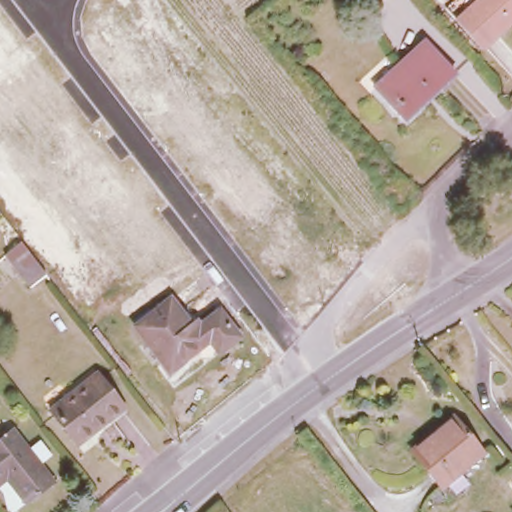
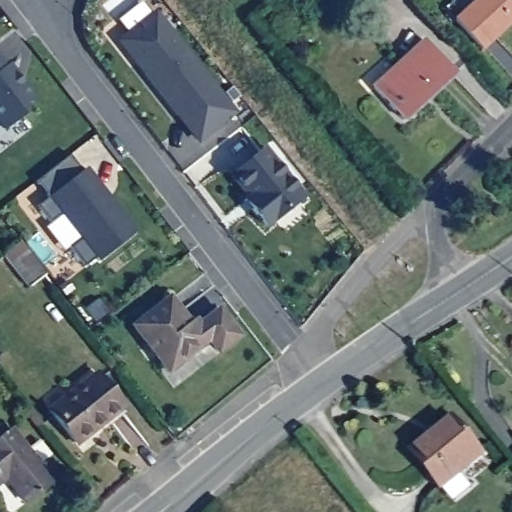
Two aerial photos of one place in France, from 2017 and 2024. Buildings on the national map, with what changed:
unchanged [(452,0),(512,0),(512,18),(481,45),(456,17),(445,5),(452,0)]
new [(236,113),(200,139),(126,42),(126,34),(158,11),(236,113)]
unchanged [(373,83),(428,39),(454,72),(400,116),(373,83)]
new [(3,66),(7,62),(33,98),(19,109),(23,114),(6,126),(0,117),(0,62),(3,66)]
new [(210,159),(242,134),(293,197),(260,225),(210,159)]
new [(67,154),(80,169),(83,166),(135,232),(100,259),(95,255),(84,263),(70,245),(80,236),(60,210),(50,219),(38,205),(48,195),(35,179),(67,154)]
demolished [(0,256),(0,227),(1,226),(27,260),(11,272),(0,256)]
demolished [(47,270),(77,248),(68,236),(78,229),(101,249),(93,257),(101,267),(65,294),(47,270)]
unchanged [(207,339),(168,370),(133,326),(167,298),(189,324),(194,320),(200,325),(219,309),(240,335),(219,354),(207,339)]
unchanged [(126,404),(109,417),(107,415),(77,439),(51,407),(98,369),(126,404)]
unchanged [(436,487),(406,449),(413,444),(451,414),(480,451),(443,481),(436,487)]
unchanged [(25,504),(6,478),(0,482),(0,427),(6,435),(15,429),(55,482),(25,504)]

